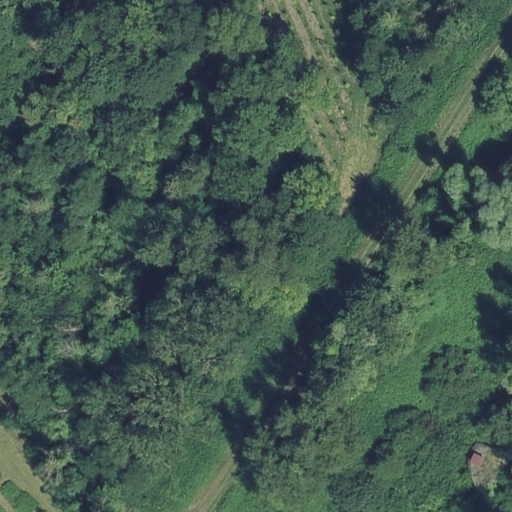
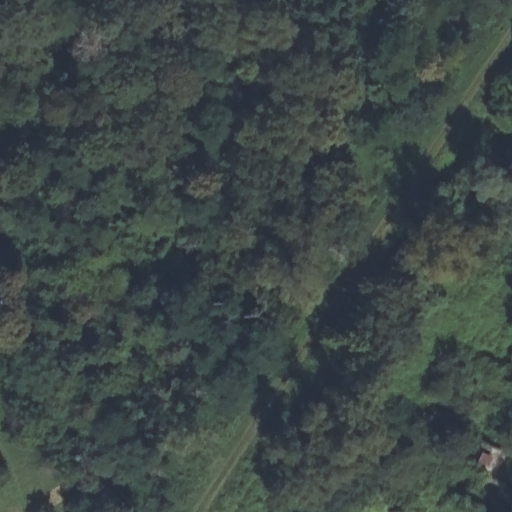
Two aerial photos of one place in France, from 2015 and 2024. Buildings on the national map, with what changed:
unchanged [(512,473),(474,470),(477,441),(512,444),(512,473)]

